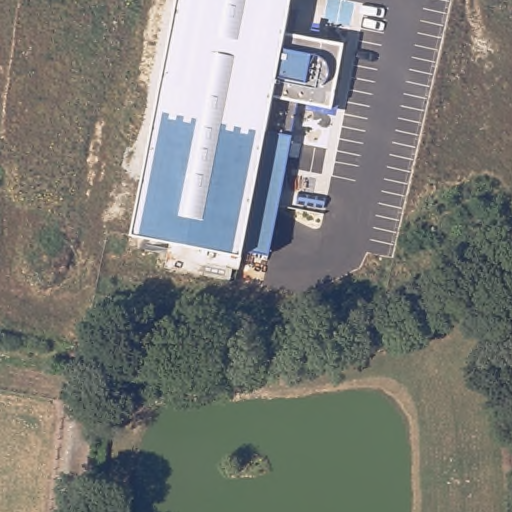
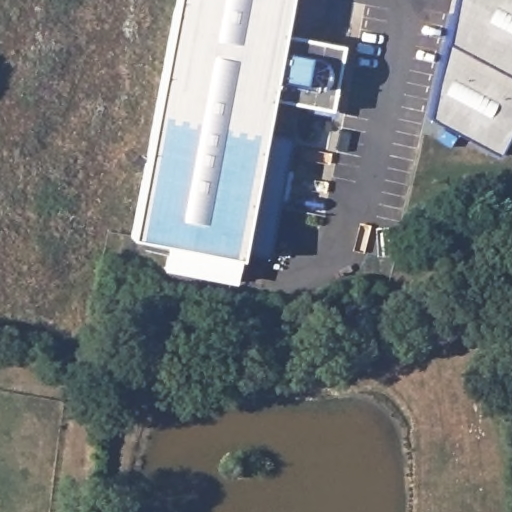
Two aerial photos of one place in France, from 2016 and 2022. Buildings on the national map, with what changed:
unchanged [(343,44),(331,107),(300,101),(291,135),(267,254),(242,249),(241,256),(236,283),(164,269),(174,242),(131,234),(176,0),(290,0),(283,33),(343,44)]
new [(497,153),(428,115),(446,39),(455,0),(512,0),(512,123),(497,153)]

